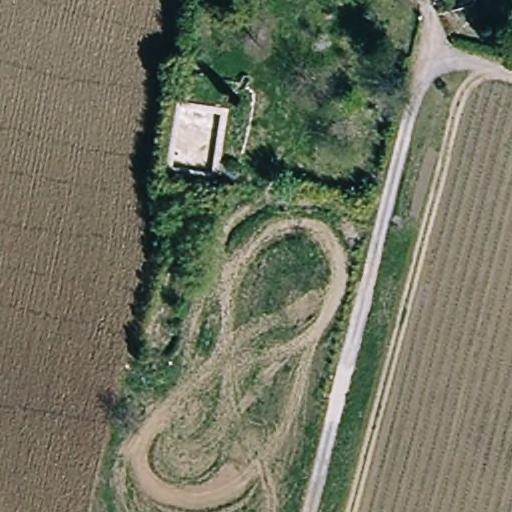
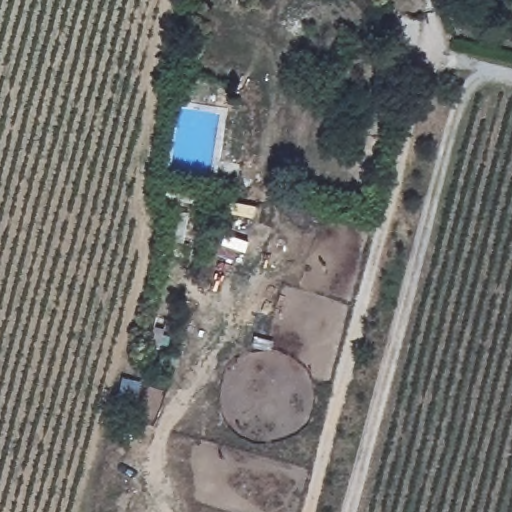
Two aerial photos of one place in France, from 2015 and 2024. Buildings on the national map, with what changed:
[]

